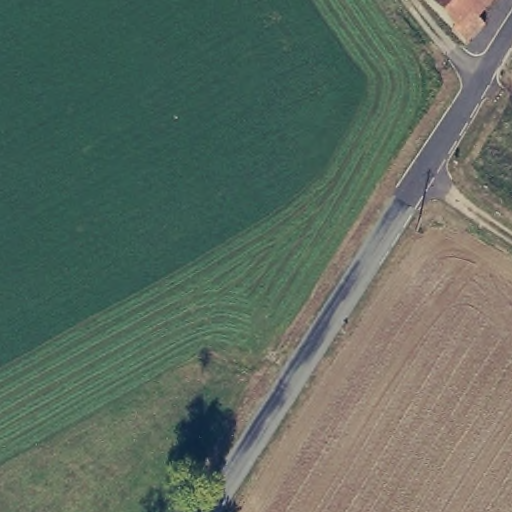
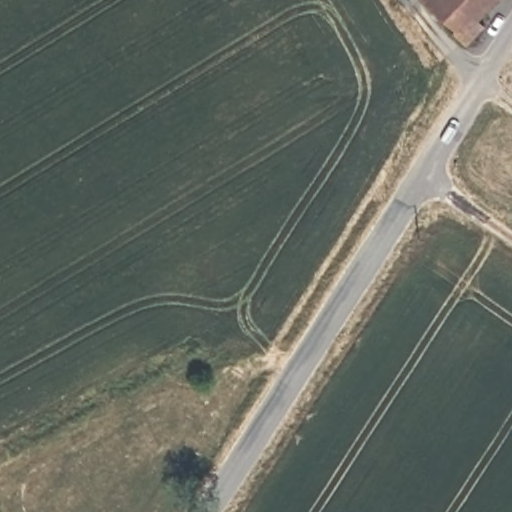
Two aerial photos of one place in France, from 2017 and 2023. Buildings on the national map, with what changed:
unchanged [(479,21),(486,27),(466,48),(427,0),(496,0),(479,21)]
unchanged [(511,82),(512,81),(512,83),(511,82)]

